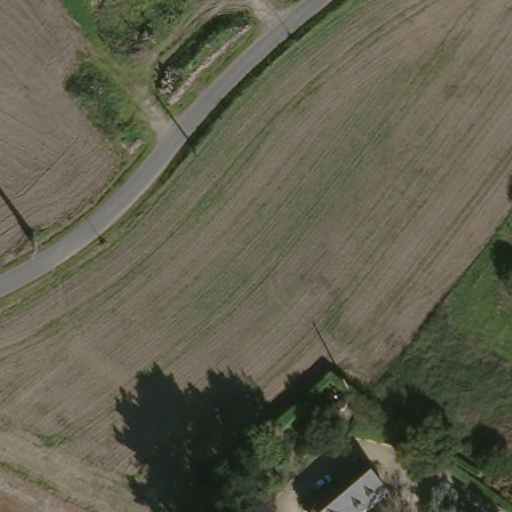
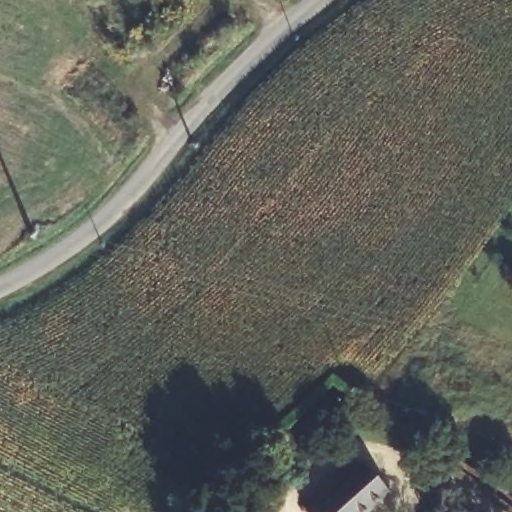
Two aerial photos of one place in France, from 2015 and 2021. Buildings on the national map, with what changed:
unchanged [(367,462),(396,492),(374,512),(316,512),(367,462)]

